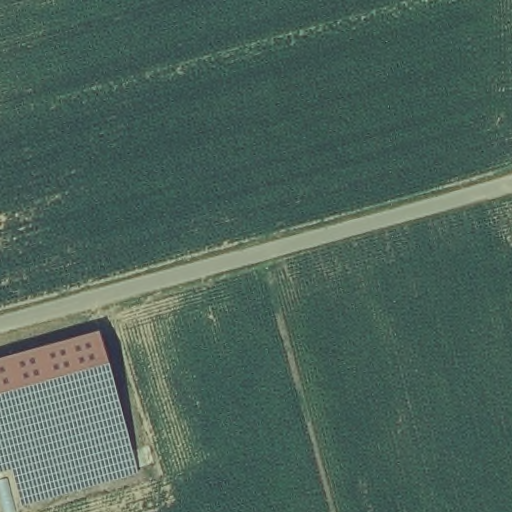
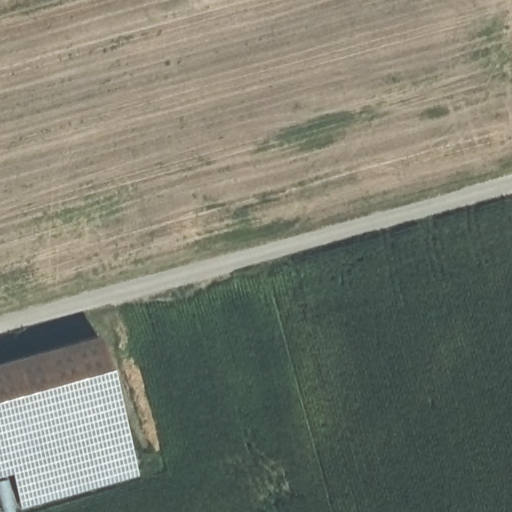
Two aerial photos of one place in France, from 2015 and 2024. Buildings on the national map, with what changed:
unchanged [(141,478),(25,511),(9,451),(0,453),(0,368),(102,339),(141,478)]

